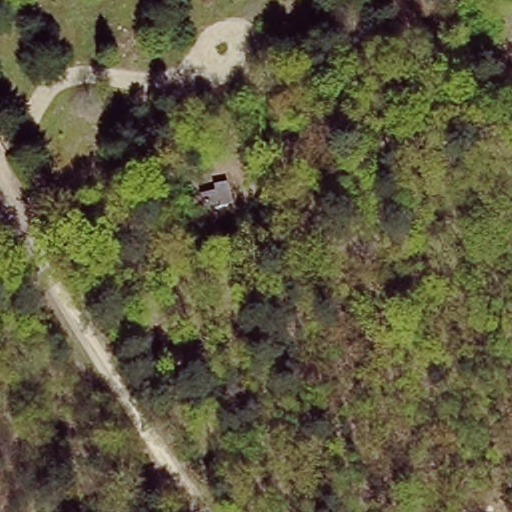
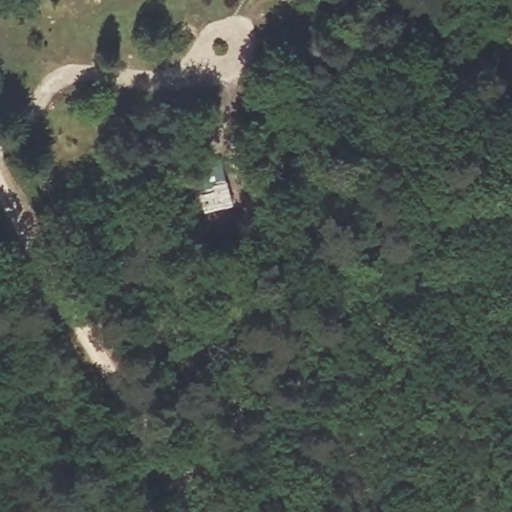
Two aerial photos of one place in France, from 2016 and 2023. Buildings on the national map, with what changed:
unchanged [(236,204),(208,214),(199,187),(226,181),(236,204)]

